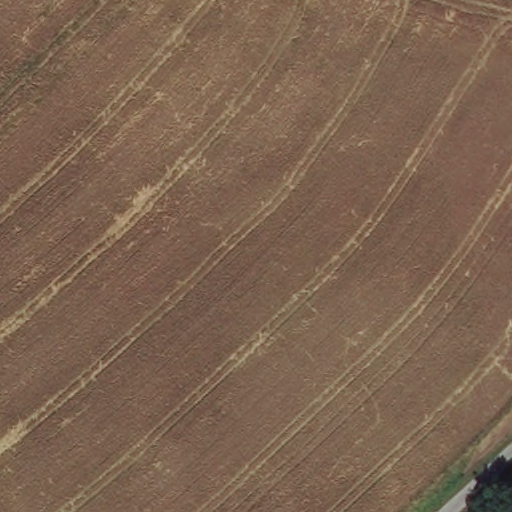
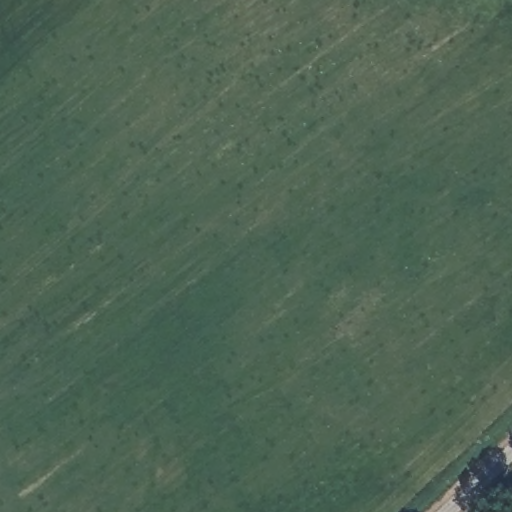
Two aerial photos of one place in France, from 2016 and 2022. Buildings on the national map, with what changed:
[]

